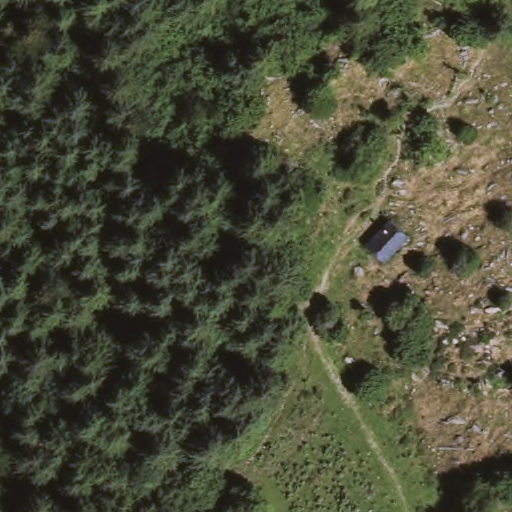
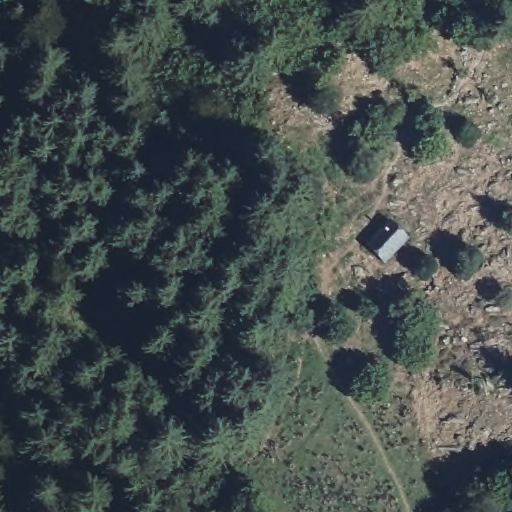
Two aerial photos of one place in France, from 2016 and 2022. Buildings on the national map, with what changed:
unchanged [(362,241),(382,212),(405,230),(383,259),(362,241)]

